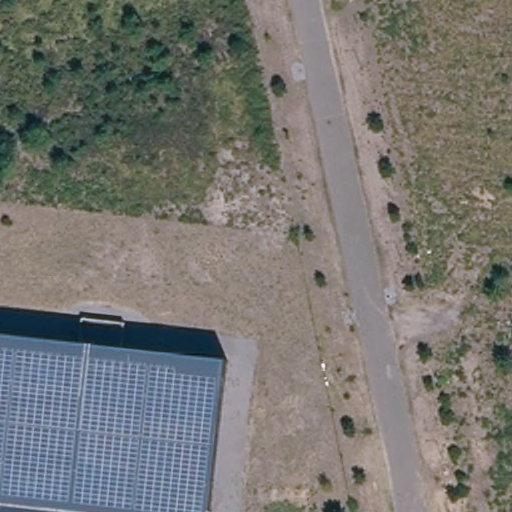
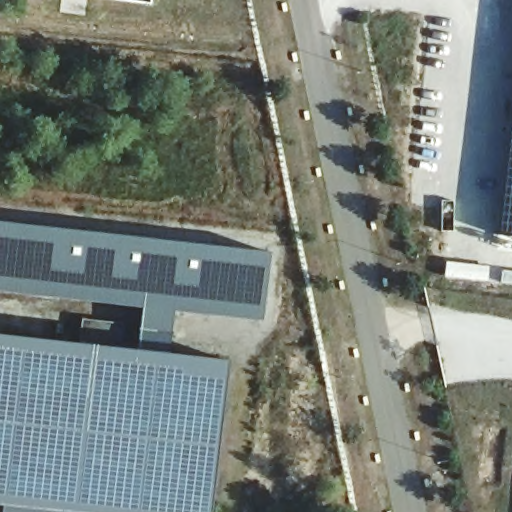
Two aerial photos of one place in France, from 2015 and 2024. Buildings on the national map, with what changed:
new [(119,0),(153,0),(152,5),(119,0)]
new [(494,234),(512,86),(512,236),(494,234)]
new [(263,321),(174,312),(170,355),(138,351),(141,308),(0,290),(0,221),(270,253),(263,321)]
new [(446,260),(489,266),(488,282),(444,277),(446,260)]
unchanged [(91,499),(90,512),(0,512),(0,509),(3,489),(0,489),(0,335),(79,344),(81,319),(124,324),(121,349),(227,361),(209,512),(205,512),(91,499)]

